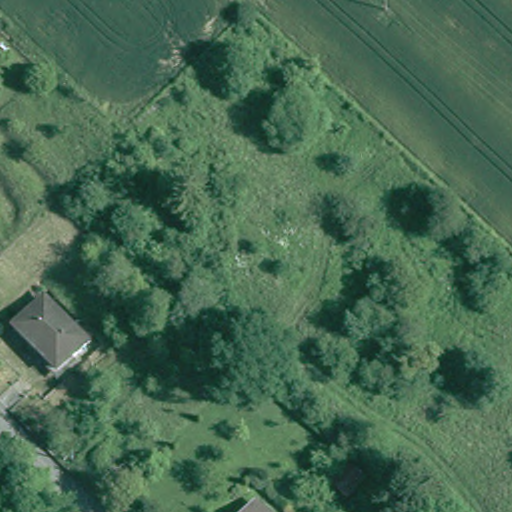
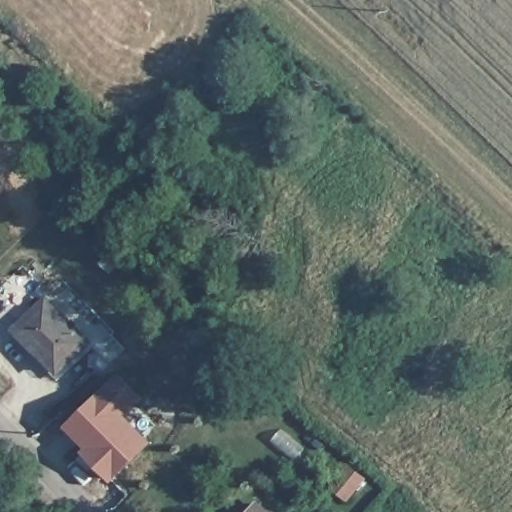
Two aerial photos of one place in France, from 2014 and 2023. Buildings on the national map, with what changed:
unchanged [(49,299),(91,345),(58,374),(16,327),(49,299)]
new [(86,448),(63,426),(118,373),(143,397),(124,416),(151,444),(113,481),(83,451),(86,448)]
unchanged [(274,512),(248,512),(259,500),(274,512)]

